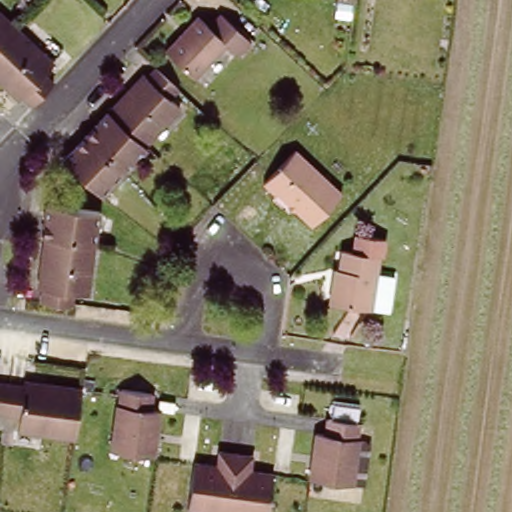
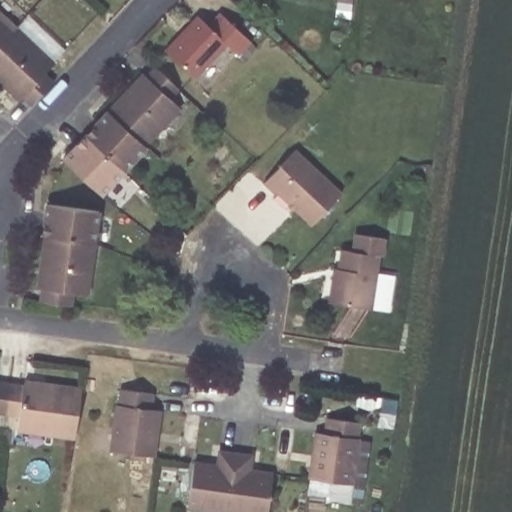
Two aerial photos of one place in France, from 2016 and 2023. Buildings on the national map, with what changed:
unchanged [(16,100),(0,85),(0,3),(57,57),(48,66),(57,75),(32,101),(23,92),(16,100)]
unchanged [(211,26),(222,13),(252,42),(243,51),(236,44),(199,83),(167,52),(202,17),(211,26)]
unchanged [(180,103),(185,108),(150,145),(154,149),(110,195),(70,157),(153,71),(160,77),(167,70),(190,92),(180,103)]
unchanged [(316,220),(272,178),(300,149),(344,190),(316,220)]
unchanged [(49,247),(42,247),(46,209),(99,214),(90,309),(76,307),(43,304),(49,247)]
unchanged [(372,306),(332,301),(335,275),(342,276),(346,249),(379,253),(372,306)]
unchanged [(20,411),(0,409),(0,372),(2,372),(0,379),(24,383),(25,378),(85,388),(80,439),(17,430),(20,411)]
unchanged [(105,452),(111,406),(115,406),(117,388),(152,392),(150,410),(158,411),(153,458),(105,452)]
unchanged [(308,476),(315,431),(322,432),(325,417),(357,421),(355,442),(358,442),(353,482),(308,476)]
unchanged [(195,462),(217,465),(218,450),(252,454),(250,470),(272,472),(267,512),(224,512),(189,507),(195,462)]

